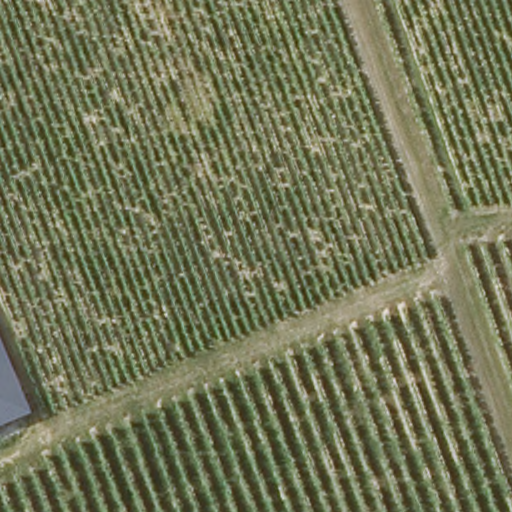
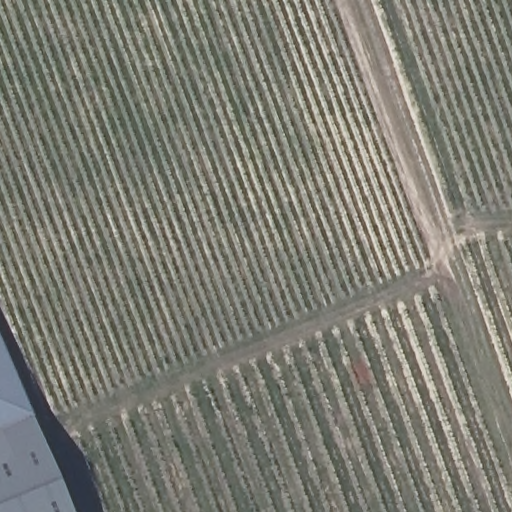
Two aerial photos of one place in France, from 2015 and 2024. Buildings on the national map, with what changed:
unchanged [(31,416),(0,428),(0,343),(31,416)]
new [(70,512),(0,512),(0,428),(31,416),(70,512)]

